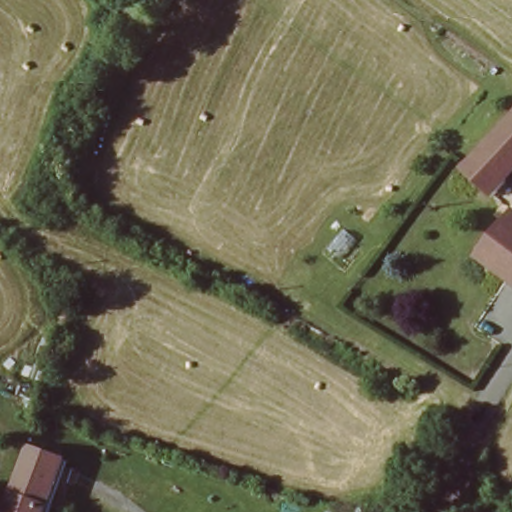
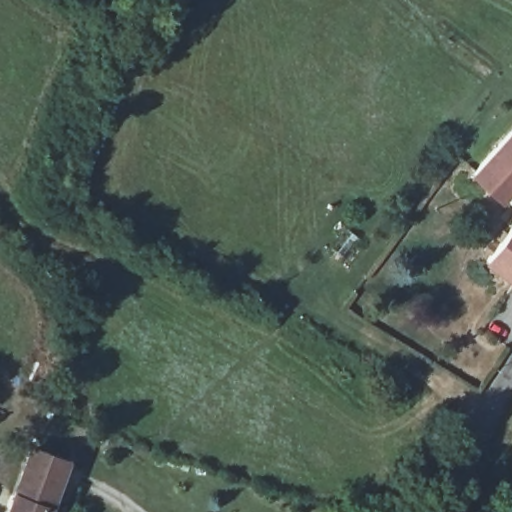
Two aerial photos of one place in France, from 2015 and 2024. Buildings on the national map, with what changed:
unchanged [(476,180),(502,151),(512,140),(512,199),(507,203),(476,180)]
unchanged [(512,283),(482,262),(512,224),(512,283)]
unchanged [(65,464),(47,512),(10,512),(31,452),(65,464)]

